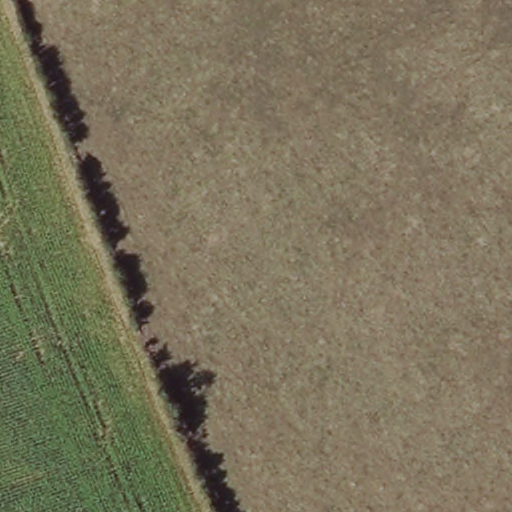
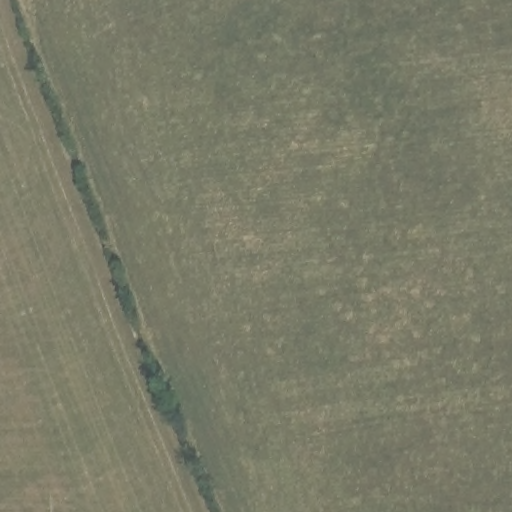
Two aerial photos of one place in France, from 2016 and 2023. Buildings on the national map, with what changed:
[]

